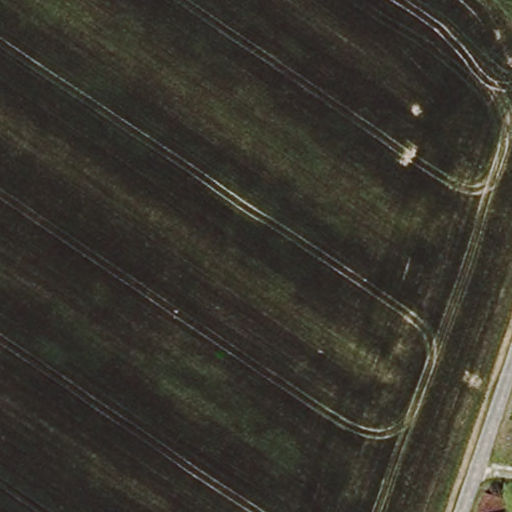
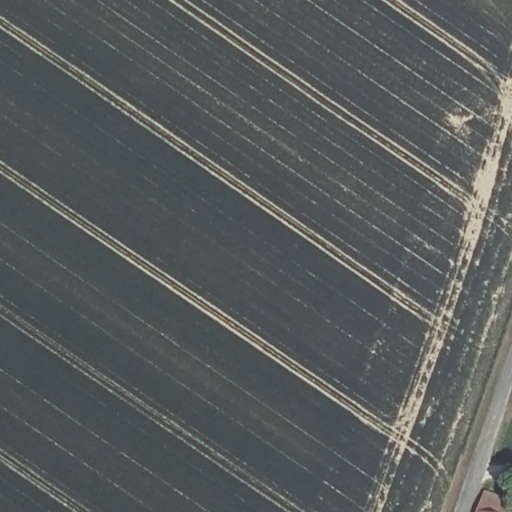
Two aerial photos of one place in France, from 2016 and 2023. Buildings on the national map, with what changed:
unchanged [(483,498),(496,503),(502,488),(512,492),(512,512),(474,512),(480,496),(483,498)]

